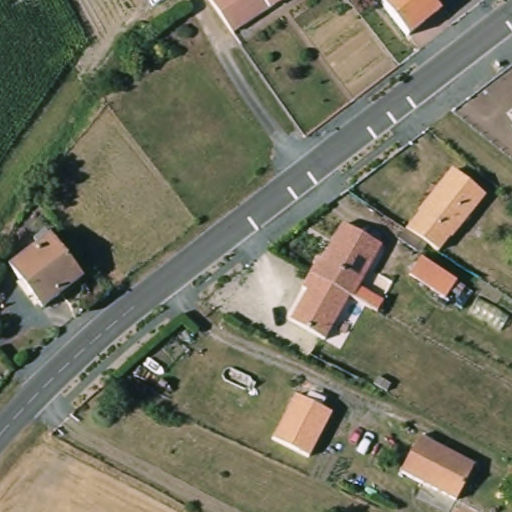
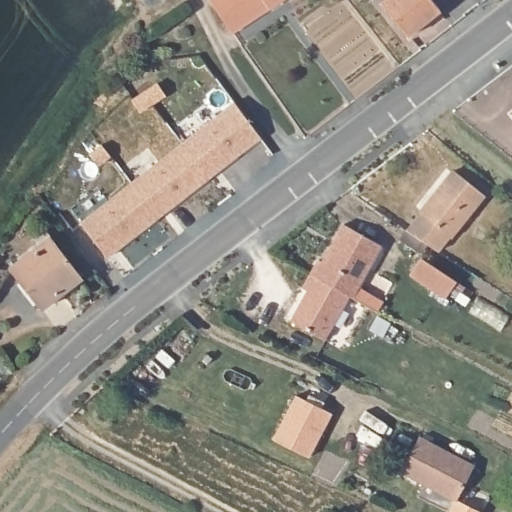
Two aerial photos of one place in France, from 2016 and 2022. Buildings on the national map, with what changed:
unchanged [(233,35),(209,0),(288,0),(233,35)]
unchanged [(440,15),(409,37),(384,3),(388,0),(430,0),(440,15)]
new [(244,91),(268,129),(114,246),(87,211),(244,91)]
unchanged [(410,228),(452,179),(480,203),(440,249),(410,228)]
unchanged [(316,254),(320,256),(342,219),(379,240),(350,291),(347,290),(320,275),(308,268),(316,254)]
unchanged [(80,285),(42,316),(7,272),(46,242),(80,285)]
unchanged [(423,256),(459,280),(448,296),(412,273),(423,256)]
unchanged [(320,275),(347,290),(323,333),(288,314),(305,284),(301,281),(308,268),(320,275)]
unchanged [(295,388),(330,406),(307,451),(272,432),(295,388)]
unchanged [(419,438),(477,467),(458,502),(404,475),(419,438)]

